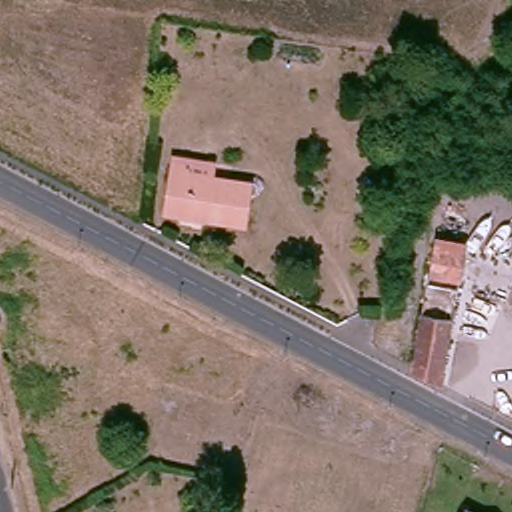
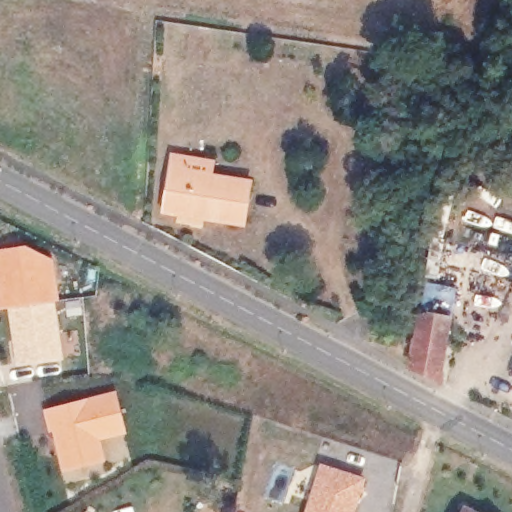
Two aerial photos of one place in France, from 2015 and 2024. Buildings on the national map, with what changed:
unchanged [(201,219),(175,214),(160,210),(161,203),(169,160),(187,164),(186,173),(244,184),(238,218),(237,227),(201,219)]
new [(53,257),(58,301),(55,302),(6,309),(0,310),(0,248),(24,244),(53,257)]
unchanged [(405,354),(411,338),(431,264),(457,274),(433,369),(405,354)]
new [(55,302),(63,359),(13,365),(6,309),(55,302)]
demolished [(512,320),(512,343),(499,338),(506,318),(512,320)]
new [(100,441),(105,462),(62,472),(53,432),(50,434),(45,411),(116,393),(127,434),(100,441)]
new [(321,464),(365,478),(354,512),(306,512),(321,464)]
unchanged [(461,503),(480,512),(457,512),(461,503)]

